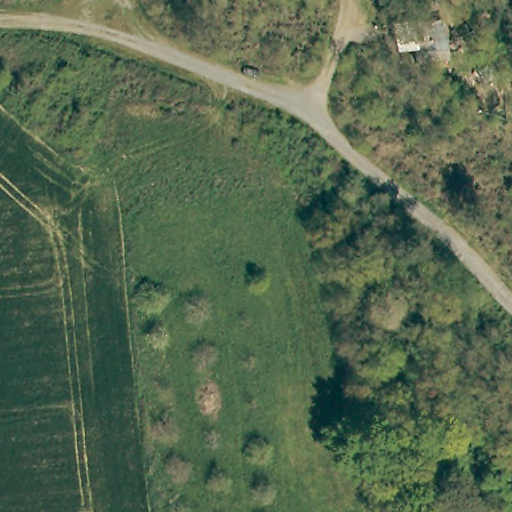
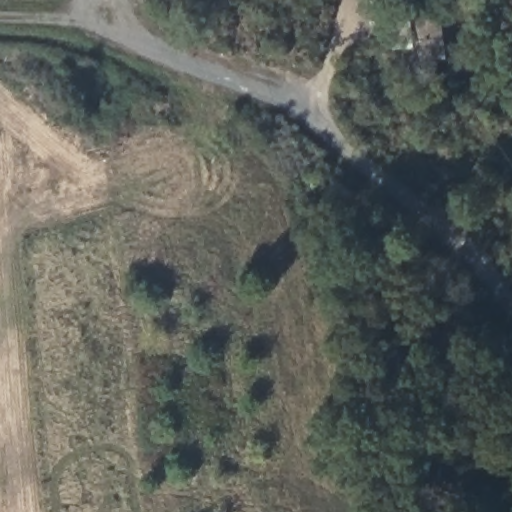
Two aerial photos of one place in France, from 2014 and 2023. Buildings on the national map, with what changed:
unchanged [(411,66),(410,30),(440,29),(442,65),(411,66)]

